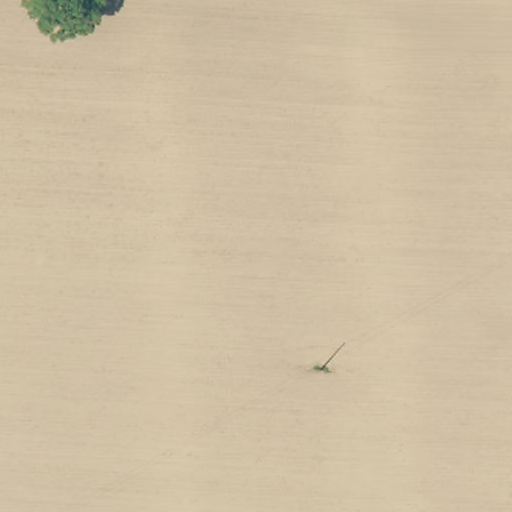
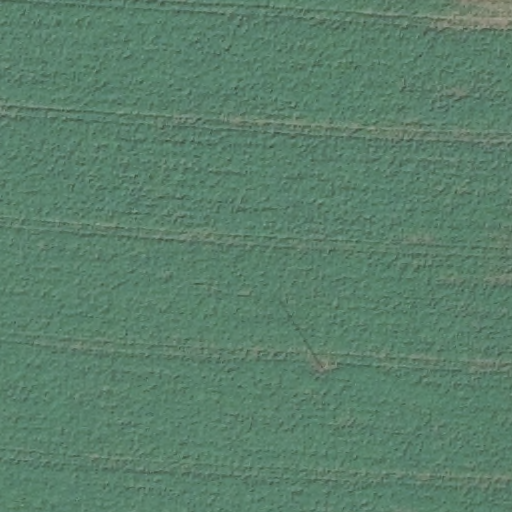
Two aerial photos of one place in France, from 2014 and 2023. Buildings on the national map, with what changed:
[]

